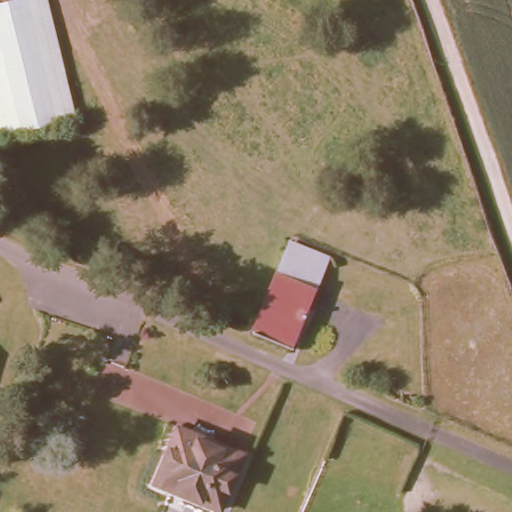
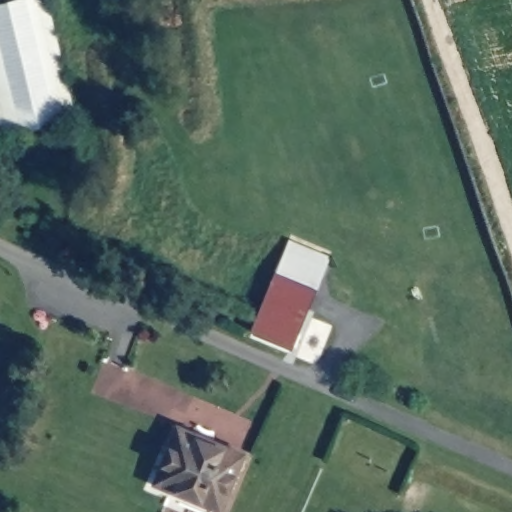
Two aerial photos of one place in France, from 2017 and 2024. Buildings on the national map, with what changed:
unchanged [(45,0),(73,112),(0,129),(0,0),(45,0)]
unchanged [(331,258),(296,342),(258,326),(293,241),(331,258)]
unchanged [(243,448),(220,505),(198,496),(199,493),(158,476),(166,454),(164,452),(177,421),(243,448)]

